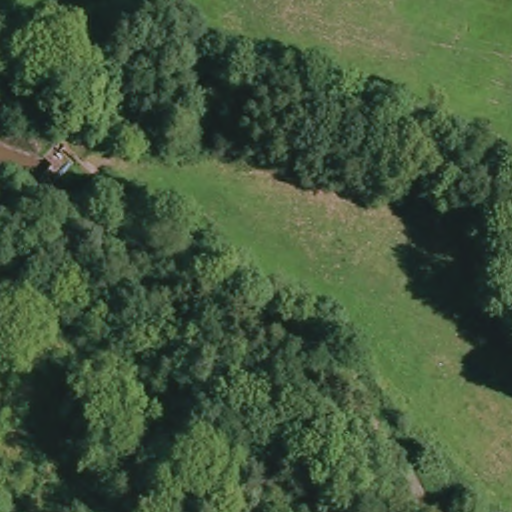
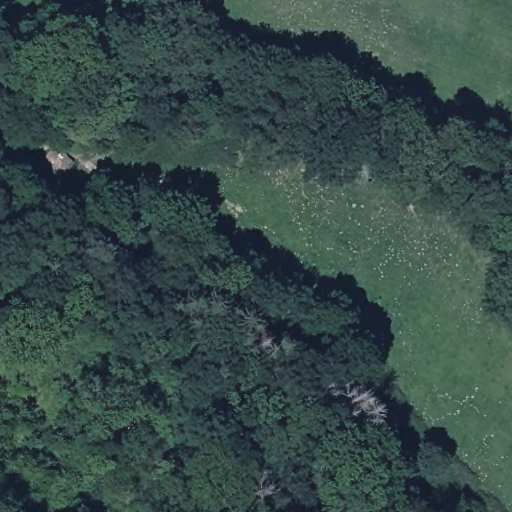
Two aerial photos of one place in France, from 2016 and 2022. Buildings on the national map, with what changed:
[]

